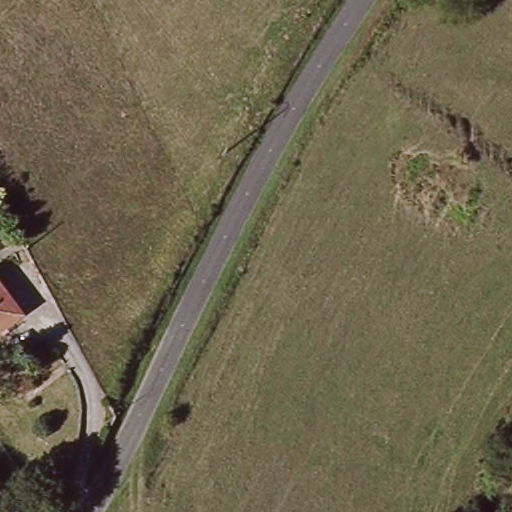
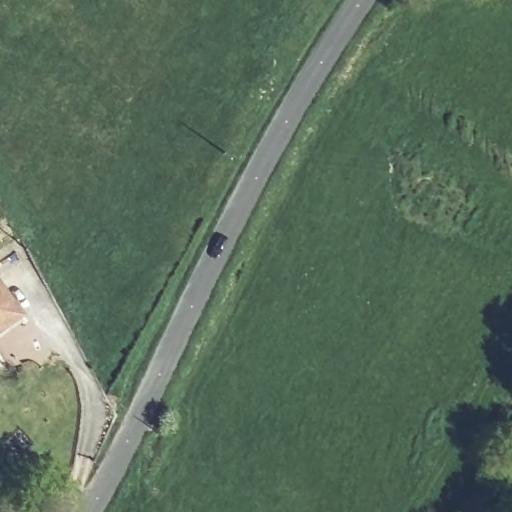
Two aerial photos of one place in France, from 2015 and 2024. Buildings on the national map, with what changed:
unchanged [(35,310),(0,335),(0,271),(2,269),(35,310)]

